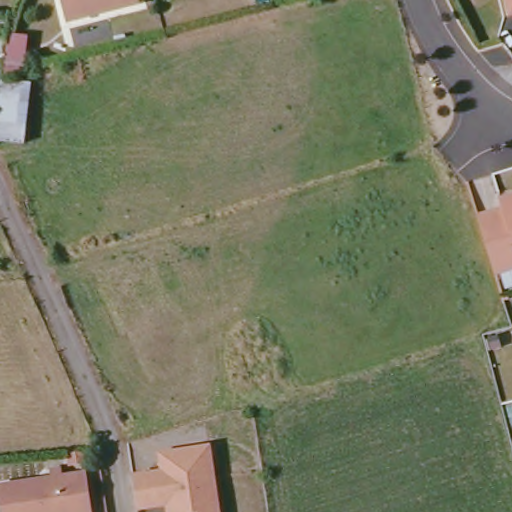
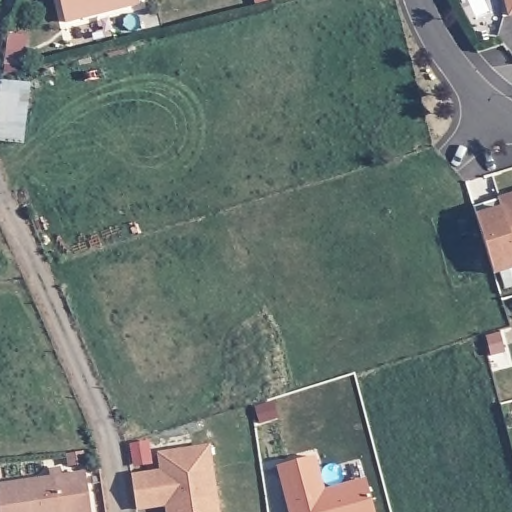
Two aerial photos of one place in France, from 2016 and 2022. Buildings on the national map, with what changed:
unchanged [(60,24),(54,0),(133,0),(135,5),(60,24)]
unchanged [(512,0),(512,16),(507,18),(503,0),(512,0)]
unchanged [(12,26),(0,25),(0,16),(12,16),(12,26)]
unchanged [(27,32),(22,63),(7,61),(11,30),(27,32)]
unchanged [(20,146),(0,144),(0,80),(27,83),(20,146)]
unchanged [(494,281),(479,224),(504,217),(501,207),(512,204),(512,276),(494,281)]
new [(500,332),(505,350),(492,354),(487,335),(500,332)]
unchanged [(223,512),(168,512),(167,511),(147,512),(140,512),(133,476),(160,472),(159,455),(214,448),(223,512)]
unchanged [(82,456),(83,466),(67,468),(65,457),(82,456)]
new [(315,457),(325,491),(367,479),(376,512),(290,512),(277,468),(315,457)]
unchanged [(0,484),(48,479),(47,472),(59,471),(60,478),(84,474),(88,512),(0,512),(0,484)]

